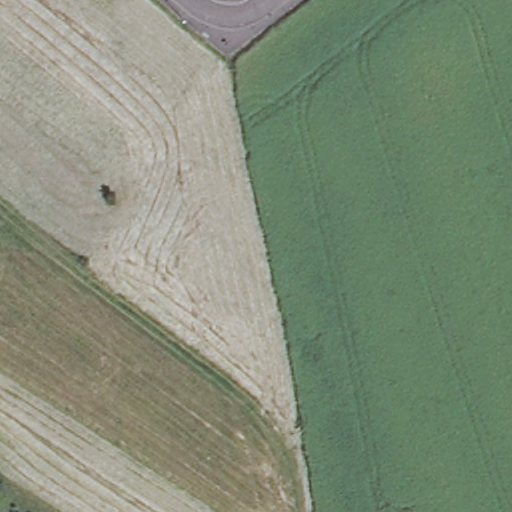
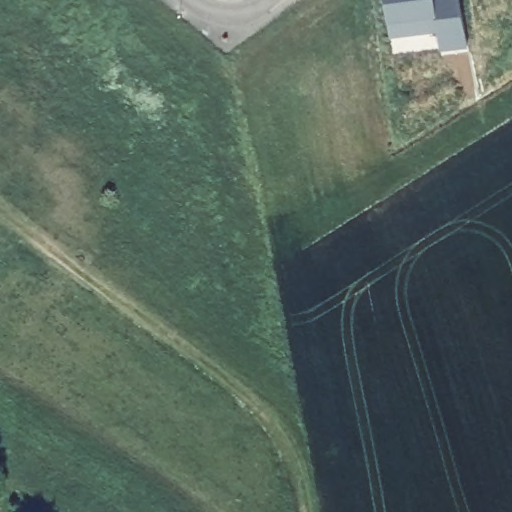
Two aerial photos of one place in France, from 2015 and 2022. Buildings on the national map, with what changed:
new [(470,48),(442,52),(440,33),(392,39),(387,0),(461,0),(470,48)]

